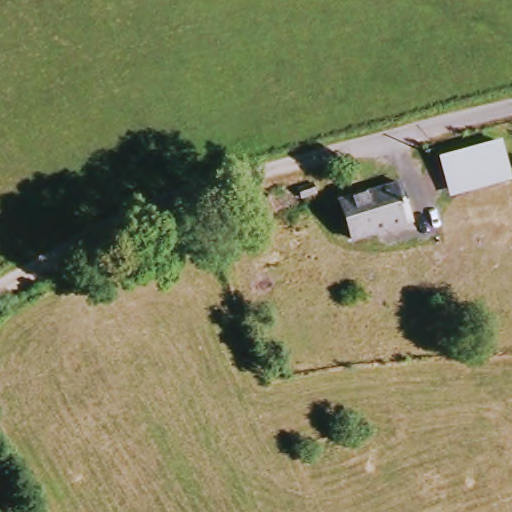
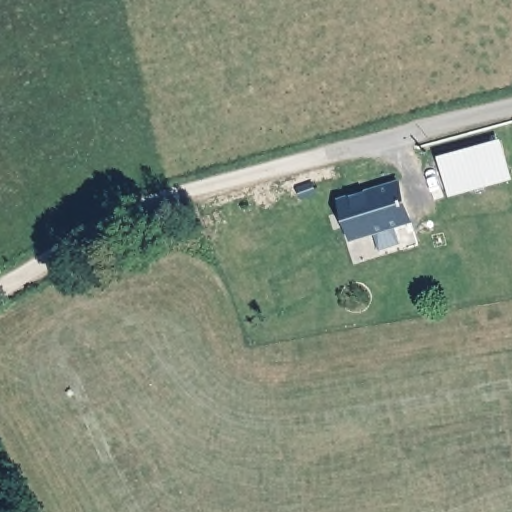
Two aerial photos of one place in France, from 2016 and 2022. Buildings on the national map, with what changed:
unchanged [(438,155),(503,138),(512,174),(512,178),(449,195),(438,155)]
unchanged [(348,237),(337,198),(397,182),(408,218),(348,237)]

